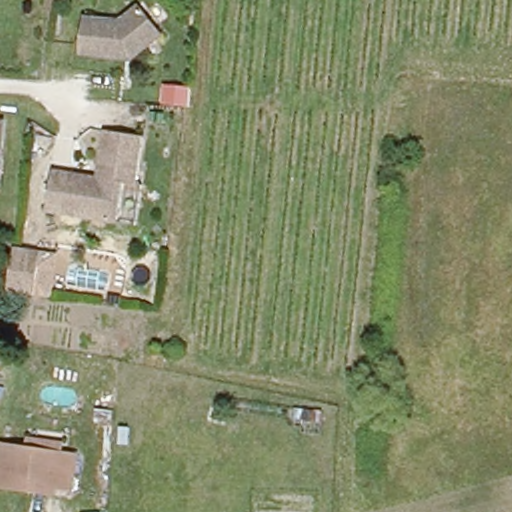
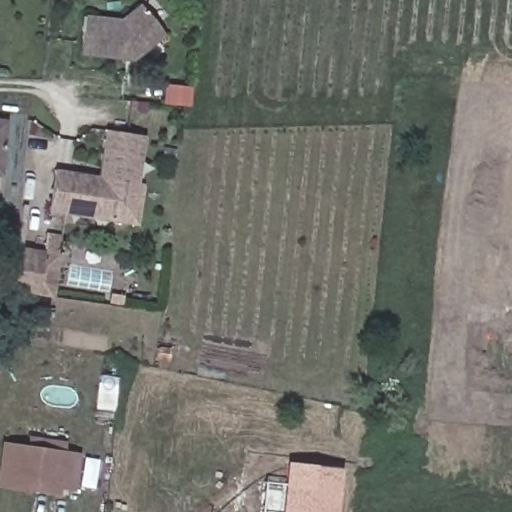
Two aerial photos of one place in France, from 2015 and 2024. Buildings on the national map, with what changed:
unchanged [(121,23),(140,9),(163,39),(136,59),(124,57),(123,60),(81,55),(85,19),(121,23)]
unchanged [(0,123),(4,123),(0,154),(0,123)]
unchanged [(148,139),(141,187),(126,186),(121,222),(50,211),(56,171),(104,179),(110,132),(148,139)]
unchanged [(53,295),(11,291),(16,247),(59,252),(53,295)]
unchanged [(0,488),(0,448),(7,448),(24,450),(25,440),(59,443),(58,453),(74,455),(71,487),(54,486),(53,492),(29,491),(3,488),(0,488)]
new [(260,512),(263,481),(283,482),(286,461),(313,463),(313,466),(342,468),(337,512),(260,512)]

